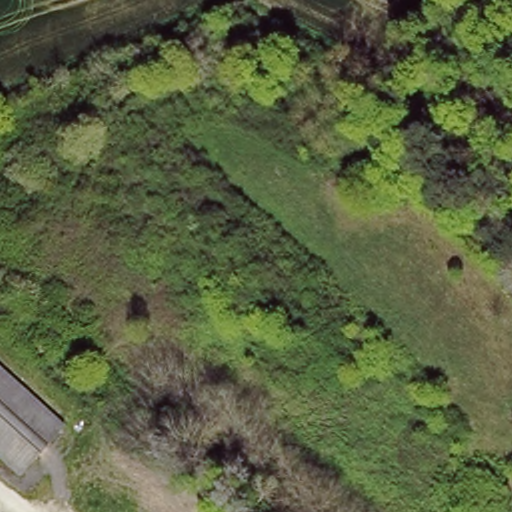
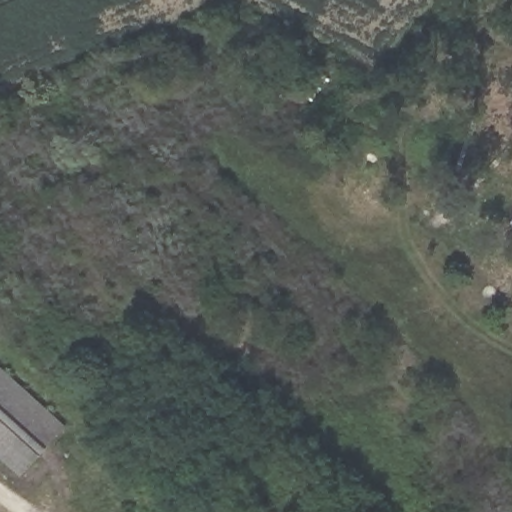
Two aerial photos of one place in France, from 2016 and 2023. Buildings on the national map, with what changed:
unchanged [(19,475),(0,459),(0,367),(65,426),(19,475)]

